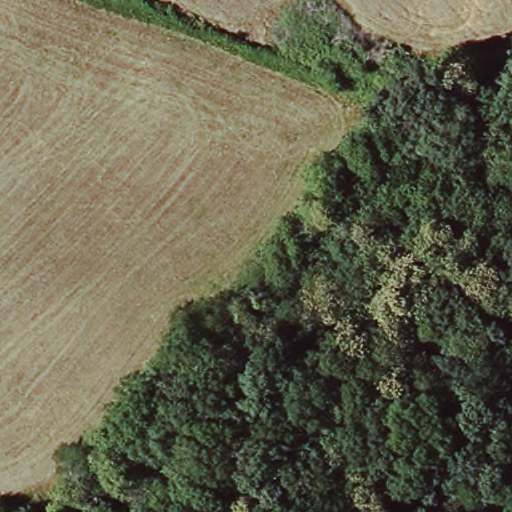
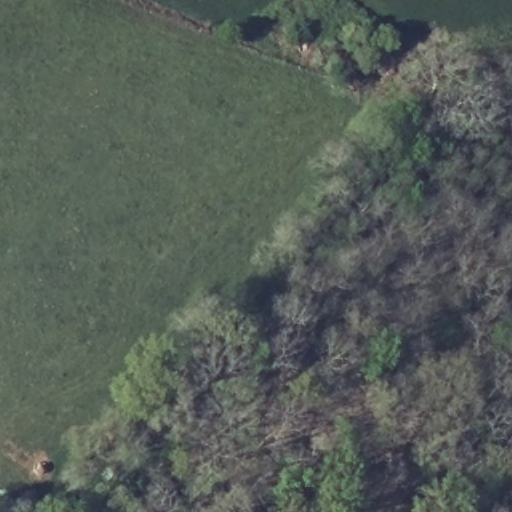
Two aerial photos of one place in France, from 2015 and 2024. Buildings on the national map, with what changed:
[]

